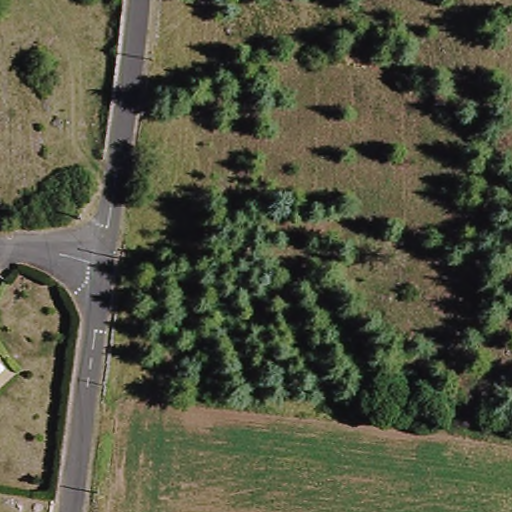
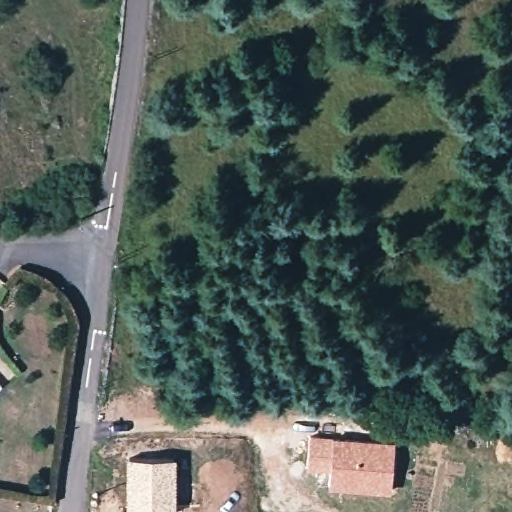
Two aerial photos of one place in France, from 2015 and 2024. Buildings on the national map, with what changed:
new [(309,433),(395,439),(392,491),(327,486),(328,472),(307,471),(309,433)]
new [(176,456),(175,512),(124,512),(124,510),(127,456),(176,456)]

